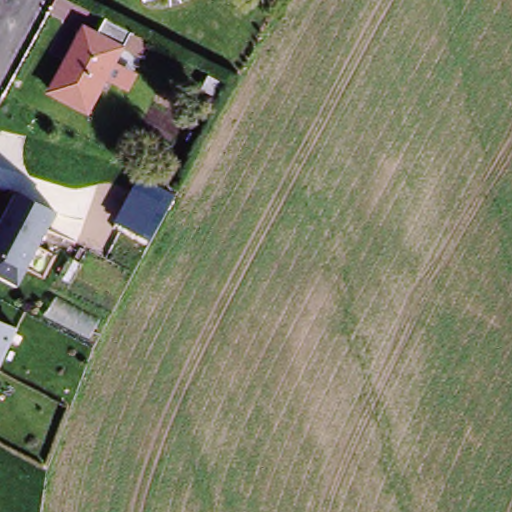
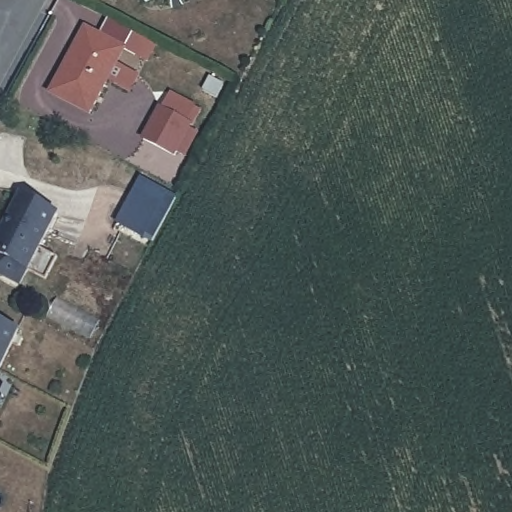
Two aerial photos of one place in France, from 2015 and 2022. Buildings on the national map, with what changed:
unchanged [(57,96),(93,31),(107,38),(115,20),(149,39),(140,57),(129,52),(93,116),(57,96)]
new [(194,124),(192,128),(200,132),(187,159),(178,156),(176,158),(139,140),(157,105),(194,124)]
unchanged [(122,226),(145,180),(167,192),(145,237),(122,226)]
unchanged [(0,255),(0,236),(25,190),(68,216),(33,274),(0,255)]
unchanged [(0,370),(0,321),(20,331),(0,370)]

